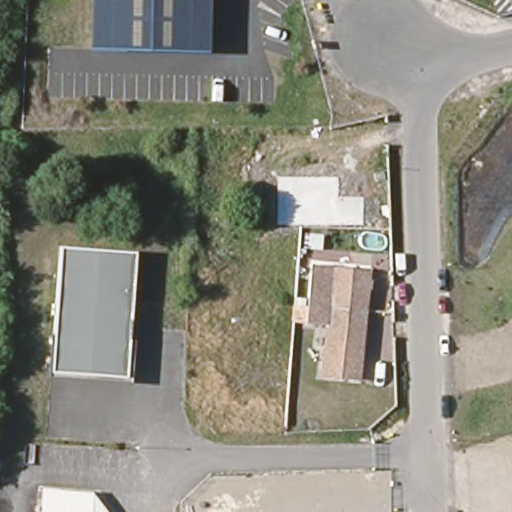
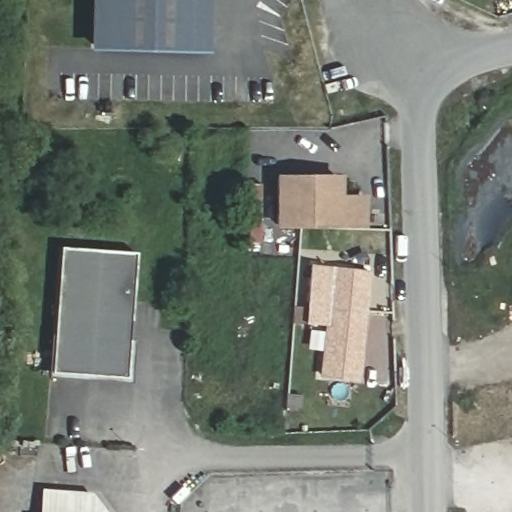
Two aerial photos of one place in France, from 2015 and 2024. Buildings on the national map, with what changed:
unchanged [(211,51),(90,49),(91,0),(212,0),(211,51)]
new [(367,194),(367,228),(275,227),(275,175),(342,174),(342,194),(367,194)]
unchanged [(137,252),(127,378),(52,372),(62,247),(137,252)]
unchanged [(361,392),(319,387),(320,326),(304,326),(307,263),(377,272),(361,392)]
unchanged [(93,492),(108,512),(43,512),(45,489),(93,492)]

